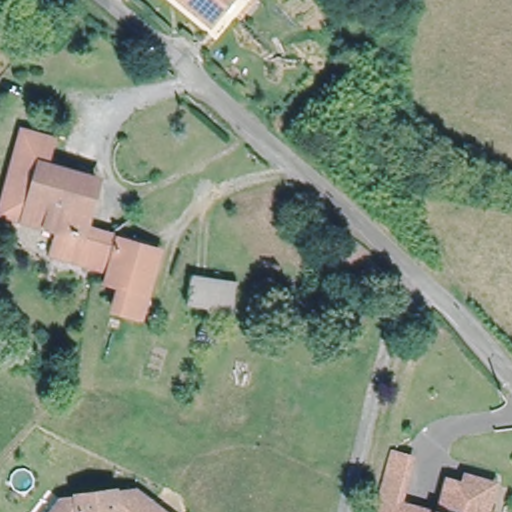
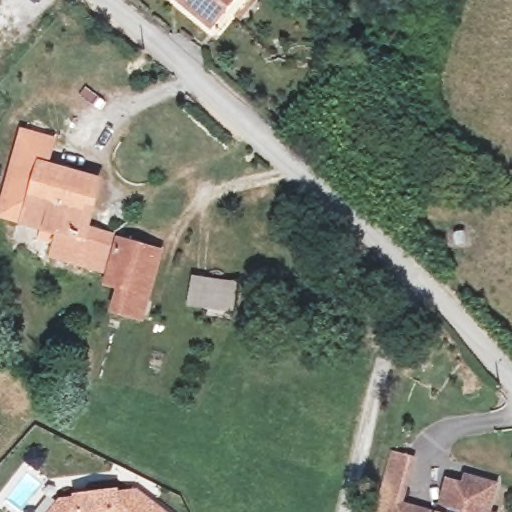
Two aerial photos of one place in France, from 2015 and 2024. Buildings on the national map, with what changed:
unchanged [(220,2),(206,18),(184,0),(240,0),(231,11),(220,2)]
unchanged [(104,259),(100,271),(47,255),(54,230),(0,215),(0,199),(19,132),(46,140),(40,165),(92,180),(77,236),(85,238),(88,230),(109,236),(106,244),(107,245),(104,259)]
unchanged [(136,318),(108,310),(115,286),(102,282),(115,239),(155,251),(136,318)]
unchanged [(233,312),(189,305),(193,275),(237,282),(233,312)]
unchanged [(408,466),(396,508),(395,512),(378,512),(392,462),(408,466)]
unchanged [(445,503),(450,486),(465,490),(467,482),(495,490),(489,512),(442,512),(445,503)]
unchanged [(57,501),(72,498),(72,496),(111,491),(111,493),(131,491),(159,512),(48,512),(57,501)]
unchanged [(396,508),(409,512),(395,512),(396,508)]

